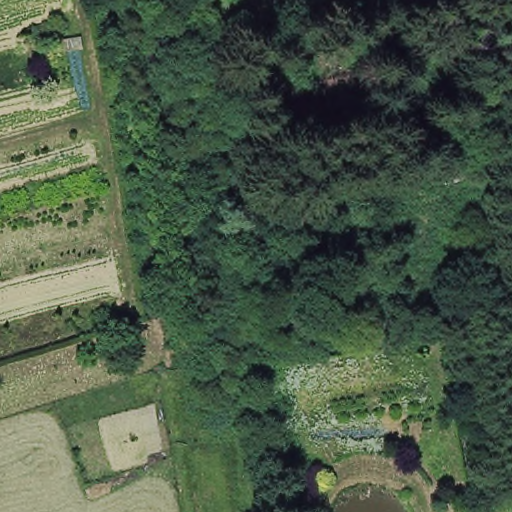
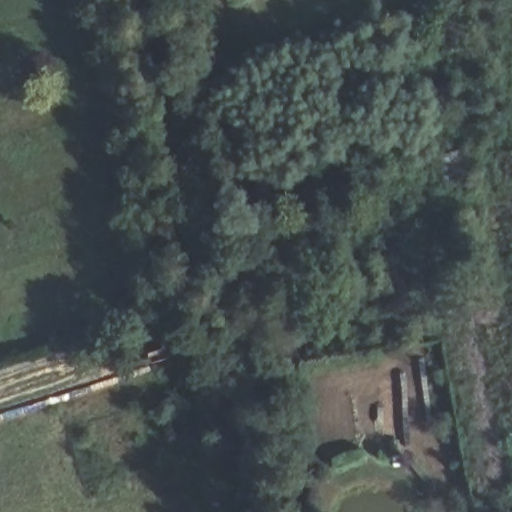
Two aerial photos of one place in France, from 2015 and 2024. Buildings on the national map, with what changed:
unchanged [(472,146),(480,177),(444,185),(439,152),(472,146)]

